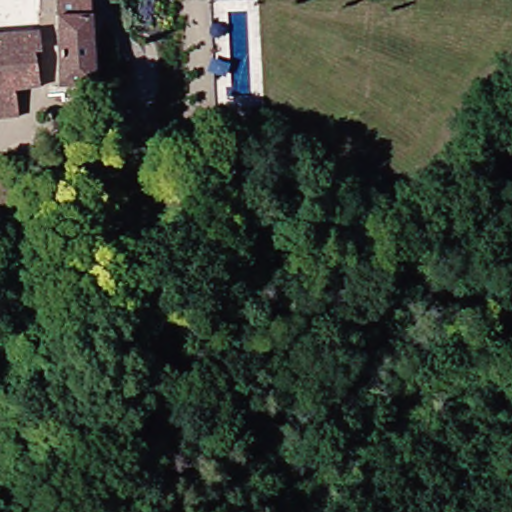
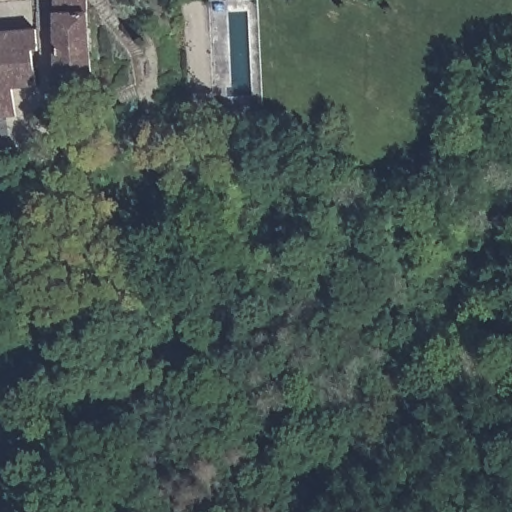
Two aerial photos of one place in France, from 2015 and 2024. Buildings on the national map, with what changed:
unchanged [(19,2),(0,3),(0,0),(36,0),(40,31),(22,32),(19,2)]
unchanged [(46,0),(83,0),(89,84),(51,85),(46,0)]
unchanged [(22,32),(40,31),(47,85),(15,89),(8,34),(22,32)]
unchanged [(15,89),(17,116),(0,118),(0,35),(8,34),(15,89)]
unchanged [(61,124),(71,126),(68,139),(58,136),(61,124)]

